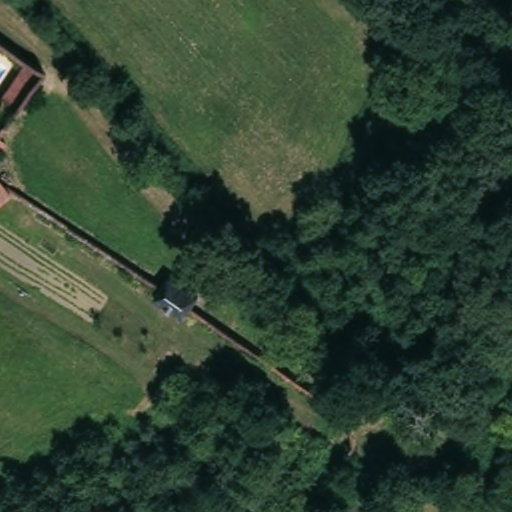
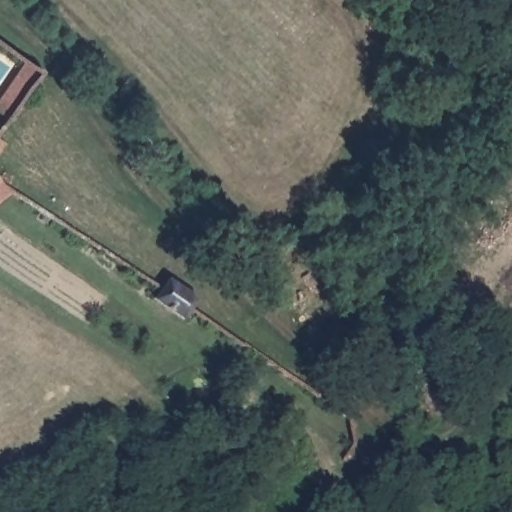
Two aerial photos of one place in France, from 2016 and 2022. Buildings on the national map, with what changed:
unchanged [(11,186),(0,195),(0,171),(11,186)]
unchanged [(194,315),(164,295),(172,281),(178,275),(207,295),(202,304),(194,315)]

